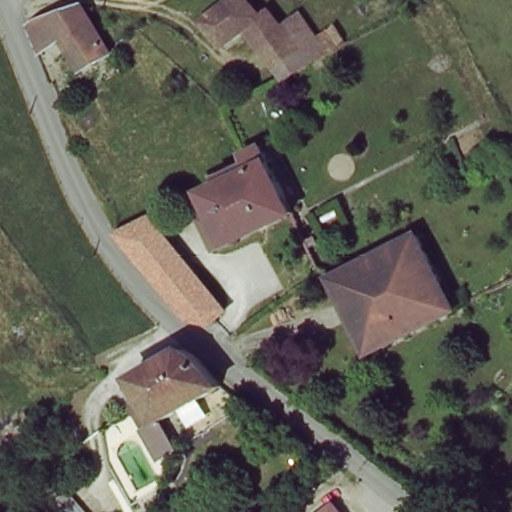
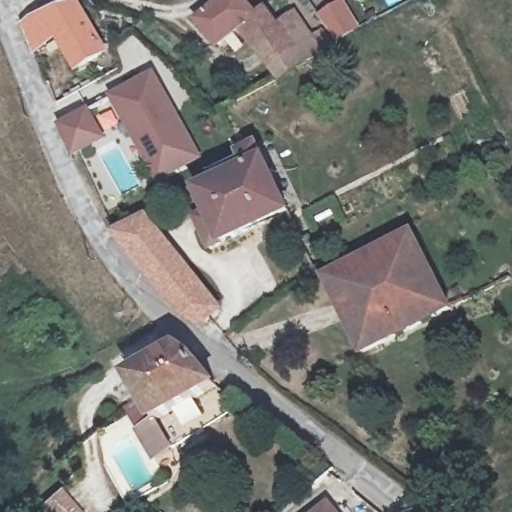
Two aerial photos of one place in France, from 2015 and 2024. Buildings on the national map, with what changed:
unchanged [(274,78),(239,25),(216,41),(199,15),(220,0),(247,0),(256,11),(265,6),(277,20),(294,10),(311,37),(319,33),(328,47),(274,78)]
unchanged [(79,70),(58,39),(29,49),(20,23),(75,3),(102,45),(106,52),(79,70)]
new [(151,74),(199,154),(160,177),(112,97),(151,74)]
new [(87,112),(102,138),(76,153),(61,128),(87,112)]
unchanged [(295,212),(218,248),(202,215),(215,208),(208,192),(225,184),(222,177),(252,163),(247,149),(262,143),(271,162),(295,212)]
unchanged [(147,220),(221,307),(212,325),(187,313),(120,240),(117,235),(147,220)]
unchanged [(339,266),(414,232),(451,310),(361,352),(350,328),(325,272),(339,266)]
unchanged [(131,379),(141,373),(182,348),(194,358),(214,388),(156,421),(142,398),(137,389),(131,379)]
unchanged [(154,460),(150,453),(137,431),(156,421),(169,442),(174,449),(154,460)]
unchanged [(340,512),(318,512),(331,501),(340,512)]

